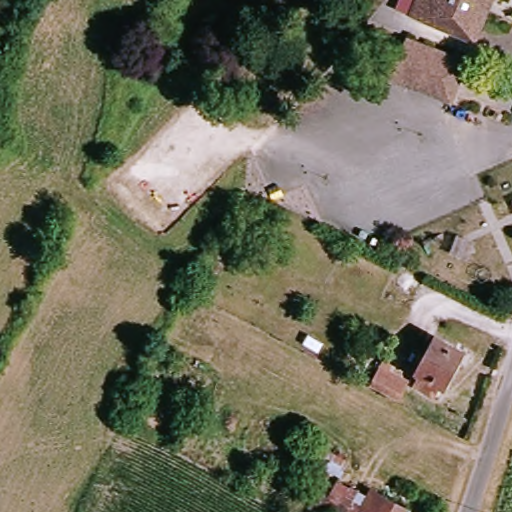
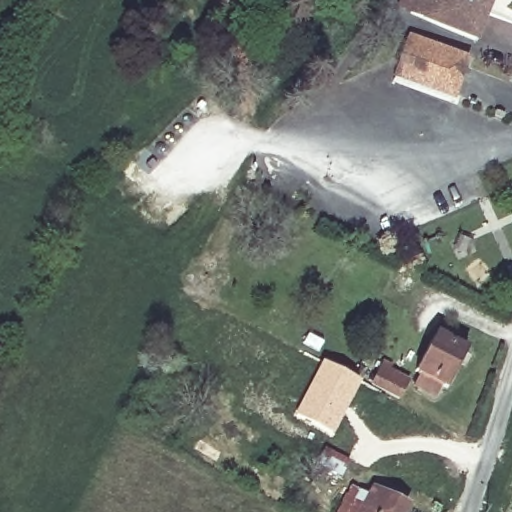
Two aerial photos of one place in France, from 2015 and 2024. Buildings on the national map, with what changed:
unchanged [(480,41),(421,15),(427,0),(497,0),(480,41)]
unchanged [(475,61),(460,105),(399,82),(415,38),(475,61)]
unchanged [(453,329),(486,347),(470,378),(460,379),(455,389),(436,378),(442,365),(437,358),(453,329)]
unchanged [(429,378),(419,394),(390,379),(400,359),(429,378)]
new [(322,360),(361,380),(333,434),(293,413),(322,360)]
unchanged [(340,482),(320,466),(332,448),(357,464),(347,479),(368,493),(375,485),(415,509),(413,512),(314,512),(320,495),(330,499),(340,482)]

